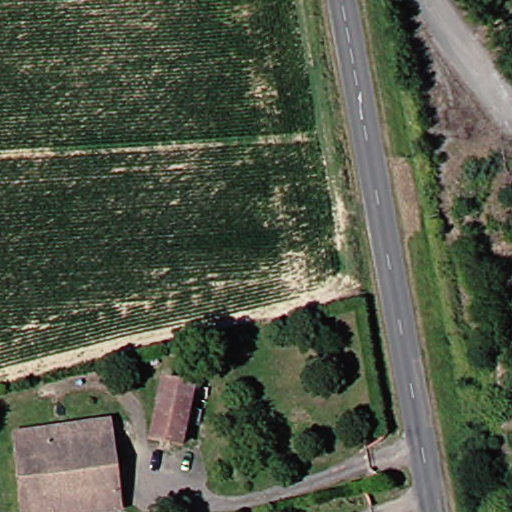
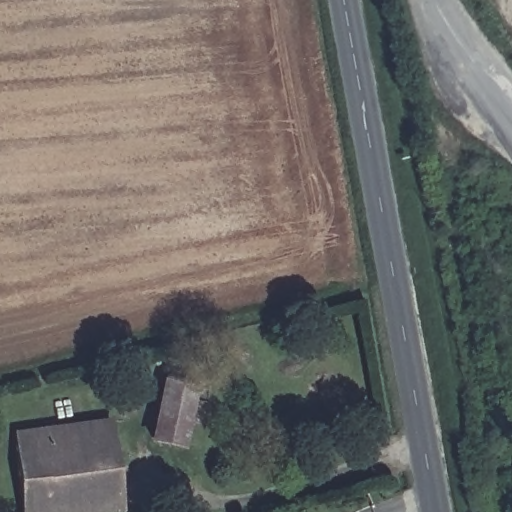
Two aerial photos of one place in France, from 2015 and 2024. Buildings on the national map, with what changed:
unchanged [(163,372),(201,379),(198,434),(153,426),(163,372)]
unchanged [(16,433),(109,417),(124,504),(66,512),(28,512),(16,433)]

